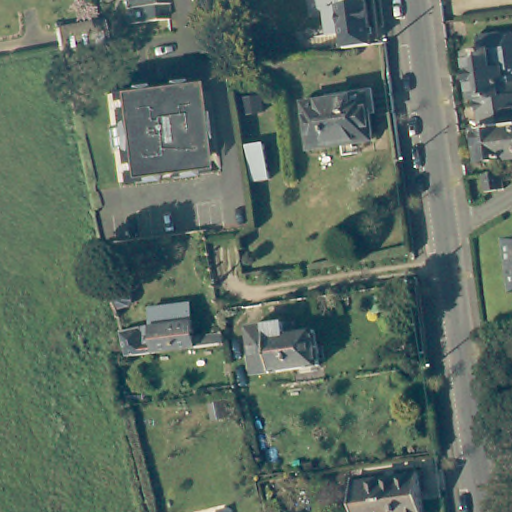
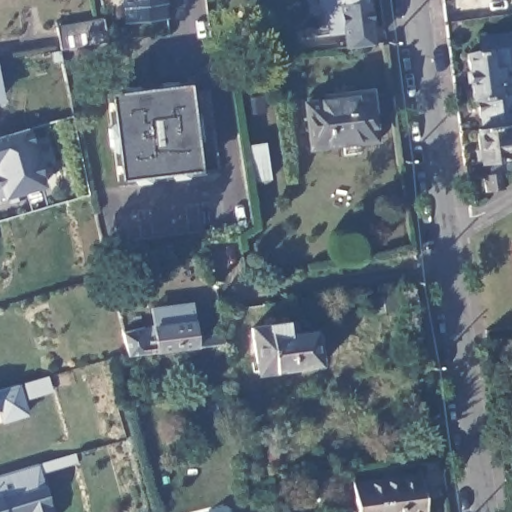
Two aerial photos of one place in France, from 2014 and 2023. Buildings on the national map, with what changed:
unchanged [(126,22),(123,0),(166,0),(167,17),(126,22)]
unchanged [(374,4),(379,46),(353,50),(352,35),(335,36),(332,12),(326,7),(325,0),(333,0),(335,9),(374,4)]
unchanged [(335,9),(333,0),(374,0),(374,4),(335,9)]
unchanged [(483,126),(479,99),(473,100),(472,85),(464,85),(463,71),(470,71),(468,54),(490,50),(490,54),(511,50),(512,58),(512,122),(497,124),(483,126)]
unchanged [(199,173),(118,182),(107,94),(187,85),(199,173)]
unchanged [(311,146),(305,101),(369,91),(375,136),(311,146)]
new [(2,102),(0,103),(0,94),(2,102)]
unchanged [(476,127),(483,126),(497,124),(512,122),(512,156),(482,160),(476,127)]
new [(45,189),(0,200),(0,136),(27,128),(45,189)]
unchanged [(254,180),(249,145),(266,142),(271,177),(254,180)]
unchanged [(506,189),(487,190),(484,172),(502,170),(506,189)]
unchanged [(92,185),(94,191),(87,192),(86,185),(92,185)]
unchanged [(124,287),(129,291),(129,298),(125,304),(112,306),(108,289),(124,287)]
unchanged [(173,311),(216,307),(217,319),(221,346),(147,355),(142,330),(176,323),(173,311)]
unchanged [(292,362),(256,367),(250,322),(287,318),(295,317),(297,329),(316,327),(320,360),(322,360),(324,377),(295,381),(292,362)]
new [(31,418),(0,427),(0,391),(22,385),(31,418)]
new [(51,512),(0,512),(0,476),(40,465),(51,512)]
unchanged [(419,467),(426,512),(354,512),(349,477),(353,476),(353,480),(417,471),(417,467),(419,467)]

